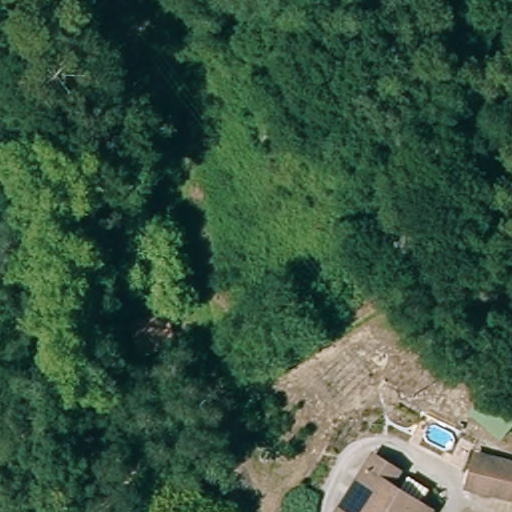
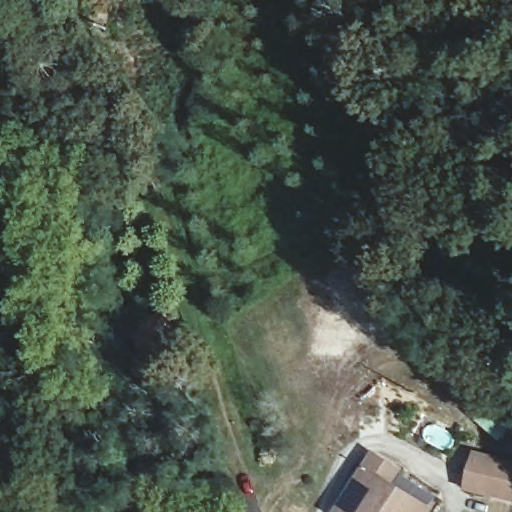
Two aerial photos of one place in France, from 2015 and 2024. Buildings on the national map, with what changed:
unchanged [(174,340),(138,352),(126,320),(162,307),(174,340)]
unchanged [(340,510),(377,451),(401,467),(392,480),(432,505),(428,512),(344,512),(340,510)]
unchanged [(460,483),(468,451),(512,463),(512,497),(460,483)]

